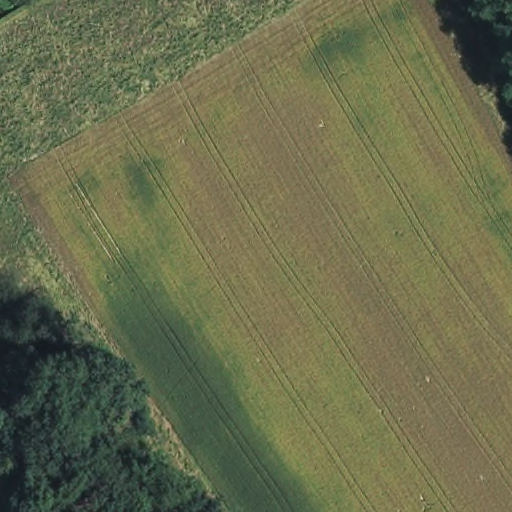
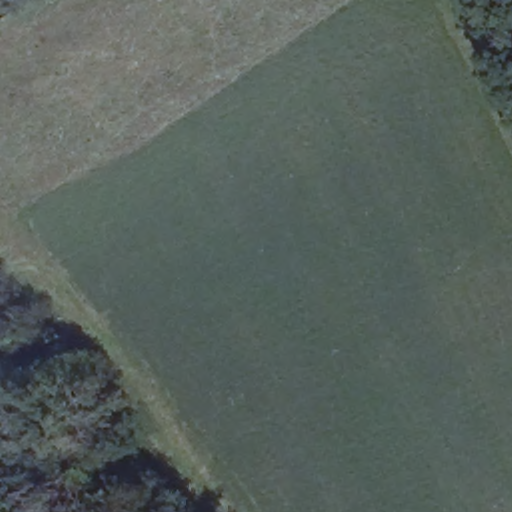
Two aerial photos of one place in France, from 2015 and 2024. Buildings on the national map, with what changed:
[]

